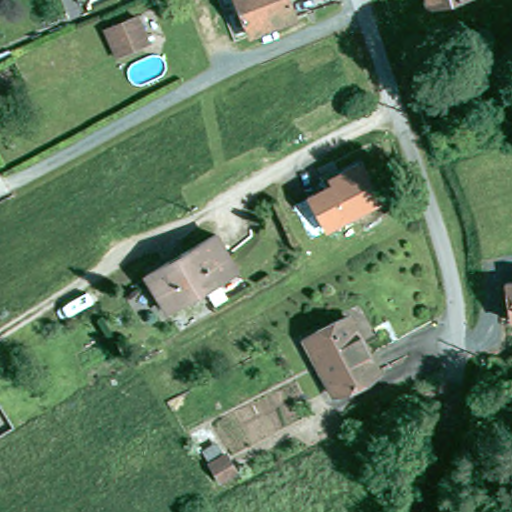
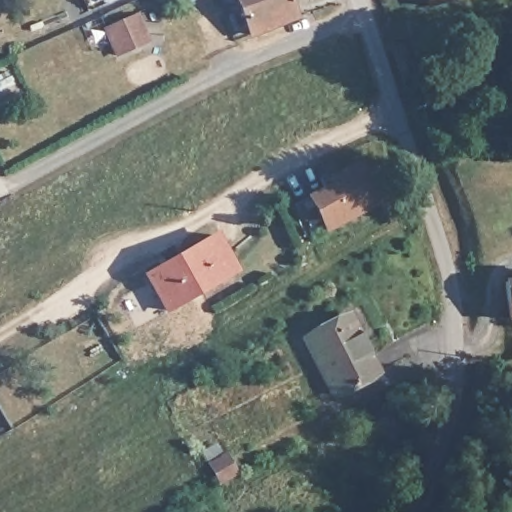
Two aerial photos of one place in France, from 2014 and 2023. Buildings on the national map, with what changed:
unchanged [(251,34),(237,0),(289,0),(296,17),(251,34)]
unchanged [(426,0),(468,0),(429,10),(426,0)]
unchanged [(137,14),(148,41),(118,54),(106,28),(137,14)]
unchanged [(379,202),(327,232),(312,241),(294,209),(309,200),(333,186),(330,181),(339,176),(357,165),(379,202)]
unchanged [(217,234),(237,270),(202,290),(182,254),(217,234)]
unchanged [(167,310),(147,274),(182,254),(202,290),(167,310)]
unchanged [(511,287),(512,287),(512,298),(511,287)]
unchanged [(349,314),(379,372),(335,394),(307,337),(349,314)]
unchanged [(512,331),(512,346),(510,347),(508,332),(512,331)]
unchanged [(217,444),(235,475),(222,482),(205,451),(217,444)]

